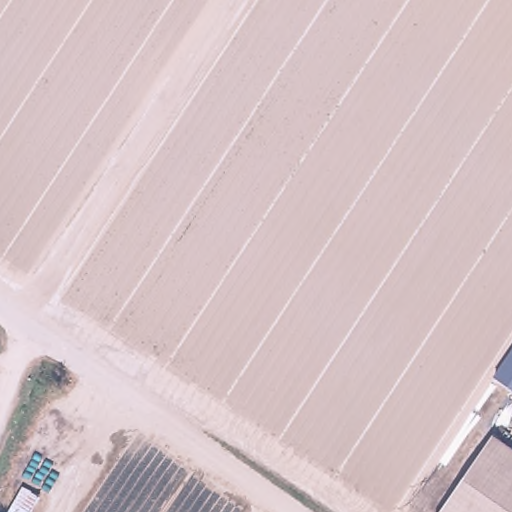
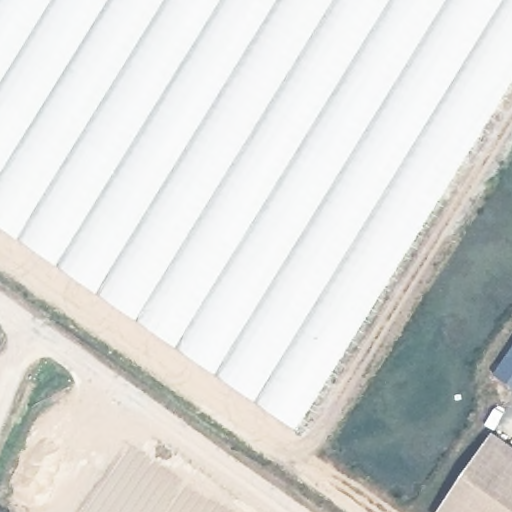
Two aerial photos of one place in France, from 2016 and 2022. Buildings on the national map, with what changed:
new [(0,228),(0,0),(512,0),(512,93),(300,435),(0,228)]
unchanged [(512,358),(512,388),(498,378),(512,358)]
unchanged [(492,432),(512,445),(512,512),(438,512),(492,432)]
demolished [(56,512),(8,512),(25,484),(56,486),(60,505),(56,512)]

